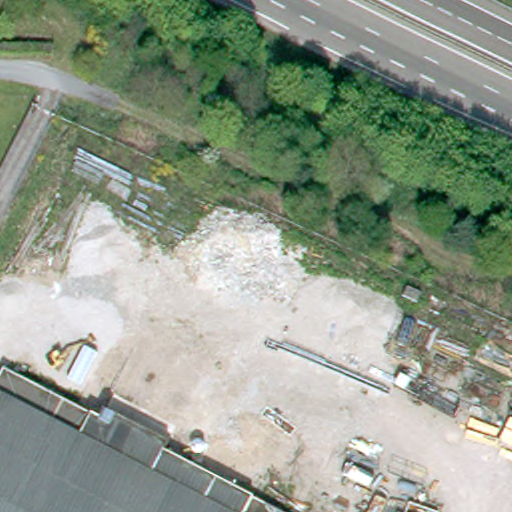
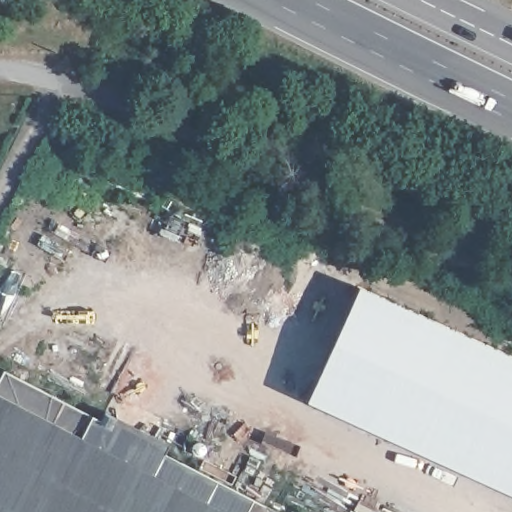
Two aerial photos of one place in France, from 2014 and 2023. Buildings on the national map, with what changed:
new [(359,286),(512,357),(512,492),(308,398),(359,286)]
unchanged [(107,413),(171,445),(166,455),(278,512),(0,512),(0,384),(6,372),(103,421),(107,413)]

